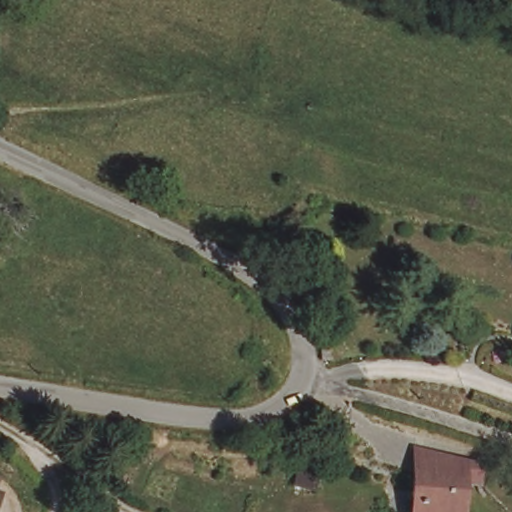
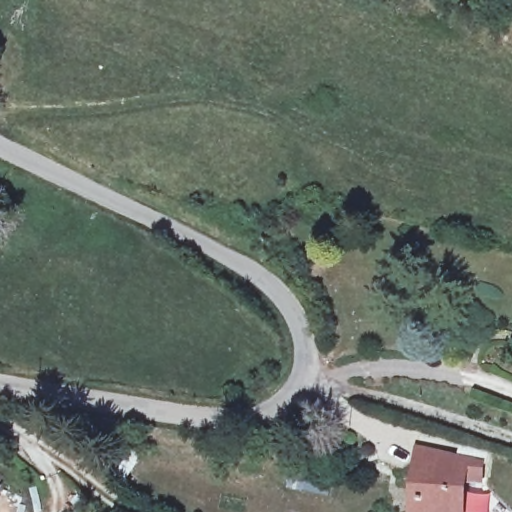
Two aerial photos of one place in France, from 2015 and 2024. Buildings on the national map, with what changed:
unchanged [(334,359),(323,359),(323,348),(333,347),(334,359)]
unchanged [(477,487),(462,486),(460,512),(410,512),(412,484),(414,453),(421,455),(479,469),(477,487)]
unchanged [(1,483),(0,487),(0,483),(1,483)]

